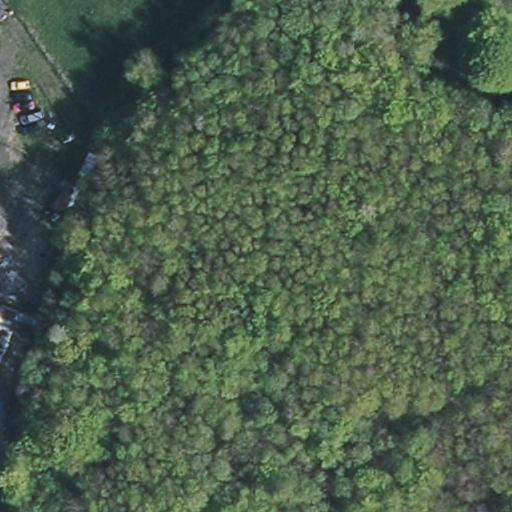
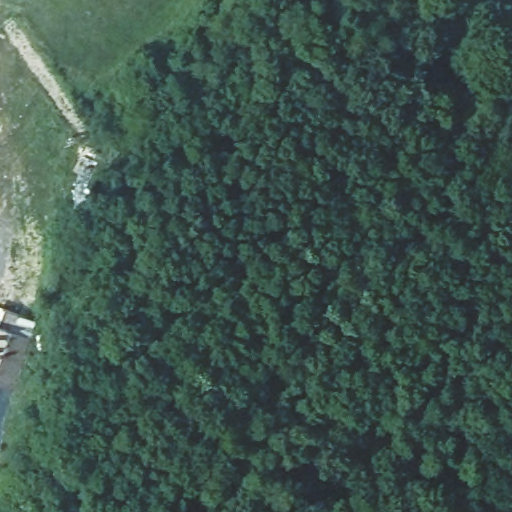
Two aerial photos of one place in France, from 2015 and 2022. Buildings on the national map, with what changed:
unchanged [(0,312),(16,319),(32,326),(16,379),(13,388),(0,382),(0,312)]

